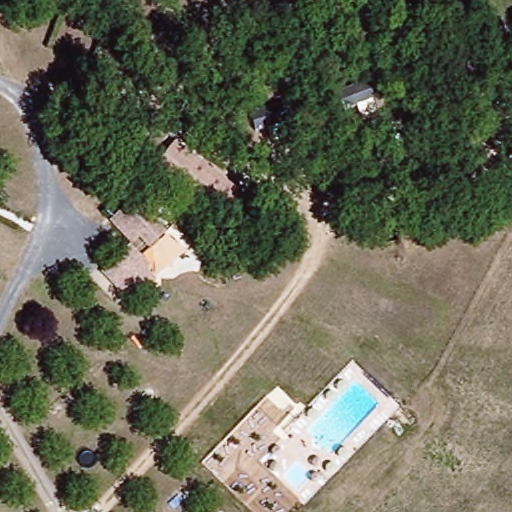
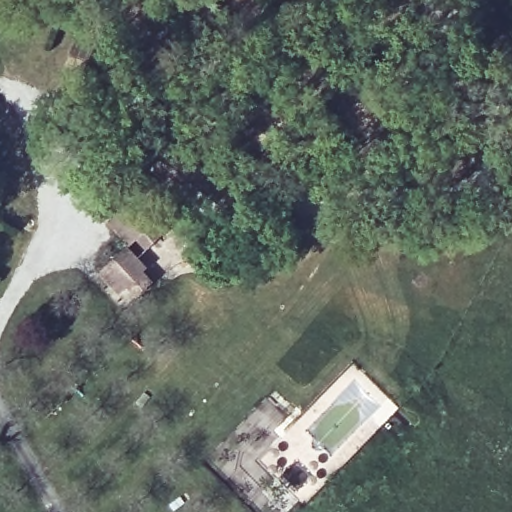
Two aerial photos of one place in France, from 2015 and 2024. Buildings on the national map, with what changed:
unchanged [(371,75),(377,94),(342,105),(336,88),(371,75)]
unchanged [(281,100),(286,119),(251,129),(246,108),(281,100)]
unchanged [(220,225),(167,183),(157,170),(188,149),(198,163),(243,196),(220,225)]
unchanged [(186,256),(131,301),(103,267),(131,247),(108,222),(142,194),(186,256)]

